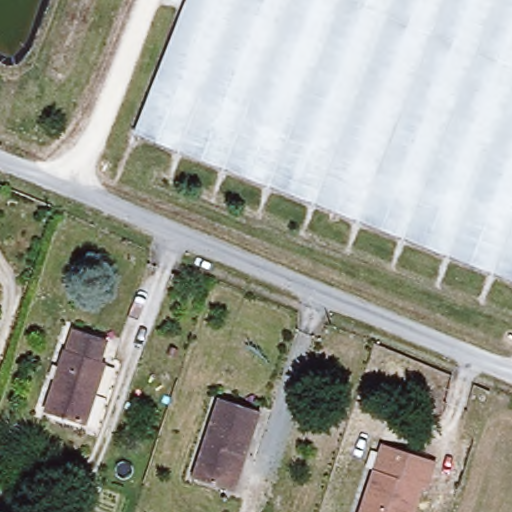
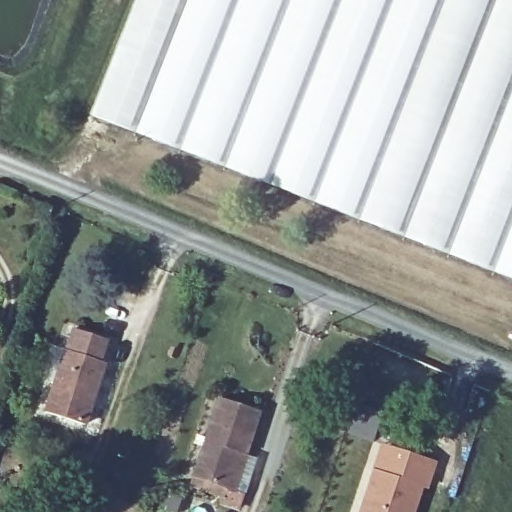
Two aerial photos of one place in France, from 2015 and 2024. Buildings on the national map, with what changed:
new [(135,137),(89,118),(135,0),(189,0),(135,137)]
unchanged [(189,0),(512,0),(512,283),(135,137),(189,0)]
unchanged [(78,418),(43,406),(73,327),(99,336),(108,340),(100,360),(105,362),(95,391),(84,420),(78,418)]
unchanged [(235,489),(200,480),(220,402),(262,413),(251,457),(242,491),(235,489)]
unchanged [(426,486),(418,512),(362,512),(375,471),(383,444),(404,450),(437,460),(431,487),(426,486)]
unchanged [(3,512),(0,512),(0,510),(3,512)]

